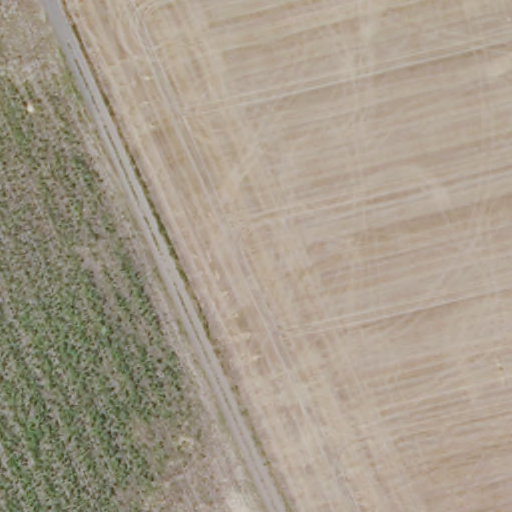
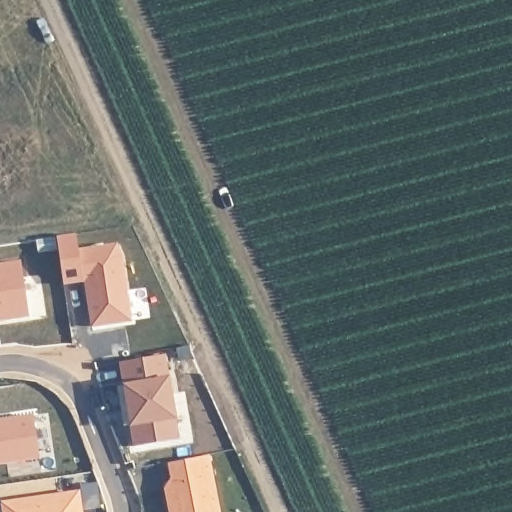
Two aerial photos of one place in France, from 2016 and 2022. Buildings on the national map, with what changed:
new [(78,234),(83,248),(117,243),(123,260),(132,318),(93,324),(88,290),(91,290),(89,278),(65,282),(58,236),(78,234)]
new [(29,313),(11,316),(6,312),(0,313),(0,262),(21,258),(29,313)]
new [(163,353),(172,413),(154,416),(158,441),(135,445),(121,360),(163,353)]
new [(36,438),(38,456),(0,462),(0,417),(33,413),(36,438)]
new [(168,480),(171,480),(168,462),(208,455),(217,512),(169,512),(165,486),(168,480)]
new [(76,490),(80,512),(39,512),(37,495),(76,490)]
new [(37,495),(39,512),(3,512),(1,500),(37,495)]

